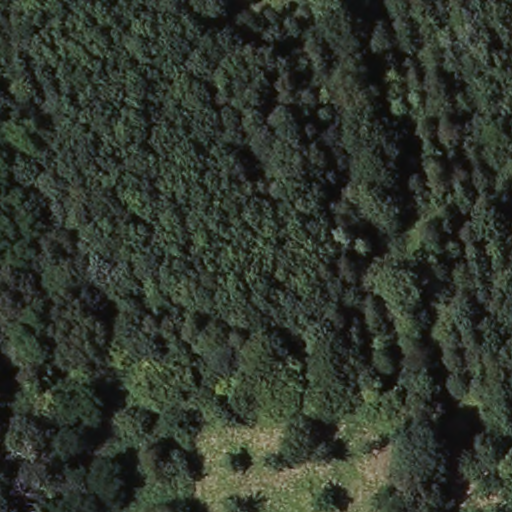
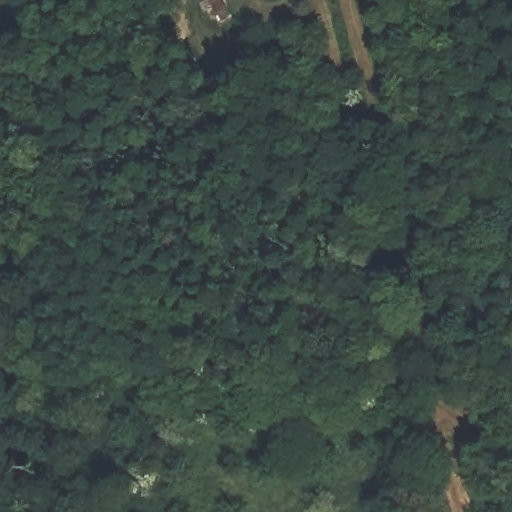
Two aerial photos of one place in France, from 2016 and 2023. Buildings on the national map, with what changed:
unchanged [(197,0),(200,0),(198,1),(197,0)]

